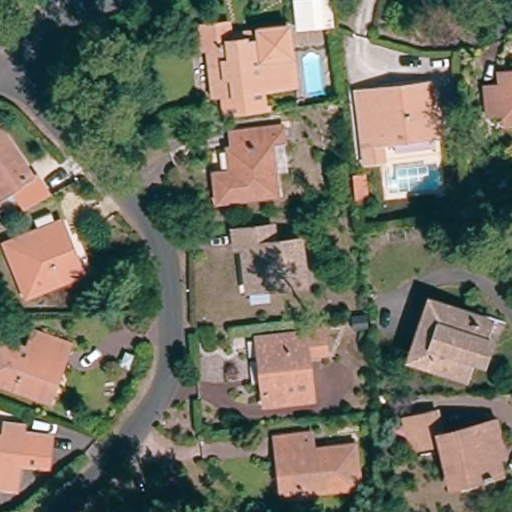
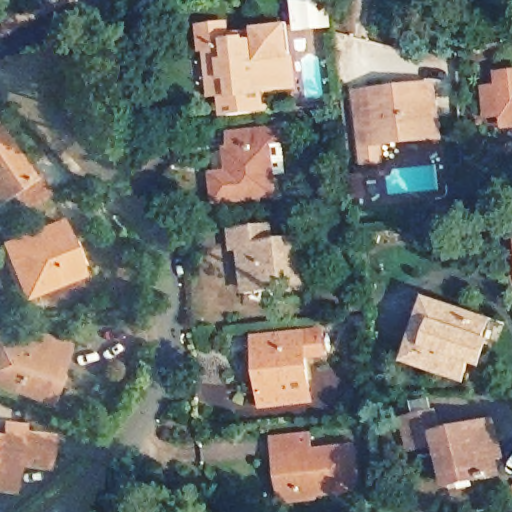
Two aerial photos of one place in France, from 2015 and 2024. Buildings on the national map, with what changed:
unchanged [(331,6),(332,18),(312,19),(297,20),(297,15),(296,0),(331,0),(331,6)]
unchanged [(266,114),(265,114),(233,118),(222,119),(220,96),(214,96),(209,52),(204,52),(202,31),(229,28),(231,41),(262,37),(261,35),(290,32),(296,89),(263,93),(266,114)]
unchanged [(505,121),(490,122),(488,94),(502,93),(502,89),(501,81),(512,81),(512,131),(506,131),(505,121)]
unchanged [(366,168),(364,152),(359,98),(375,96),(415,91),(432,88),(438,143),(383,150),(383,166),(366,168)]
unchanged [(13,153),(30,177),(24,180),(0,197),(0,134),(13,153)]
unchanged [(274,137),(279,184),(265,186),(267,207),(208,214),(205,183),(224,180),(221,159),(226,159),(225,142),(274,137)]
unchanged [(364,178),(367,198),(356,200),(354,179),(364,178)]
unchanged [(11,268),(4,249),(60,227),(67,245),(74,263),(80,278),(28,299),(23,301),(11,268)]
unchanged [(242,284),(238,250),(229,250),(228,232),(271,227),(273,243),(297,242),(303,287),(280,290),(244,295),(242,284)]
unchanged [(479,361),(472,359),(466,357),(461,369),(445,364),(444,368),(403,355),(423,298),(462,310),(459,318),(483,326),(479,338),(487,341),(479,361)]
unchanged [(16,394),(0,389),(0,348),(23,356),(30,339),(69,351),(62,371),(49,406),(16,394)]
unchanged [(308,403),(260,409),(258,391),(254,345),(263,344),(300,339),(308,403)]
unchanged [(454,498),(452,486),(445,448),(417,453),(411,425),(440,419),(444,442),(502,433),(506,453),(508,466),(502,468),(505,483),(481,488),(481,493),(454,498)]
unchanged [(1,442),(3,431),(21,433),(20,440),(46,442),(44,473),(17,471),(15,493),(0,492),(0,442),(1,442)]
unchanged [(281,504),(275,497),(270,460),(267,440),(305,435),(307,453),(347,448),(353,489),(313,495),(308,501),(281,504)]

